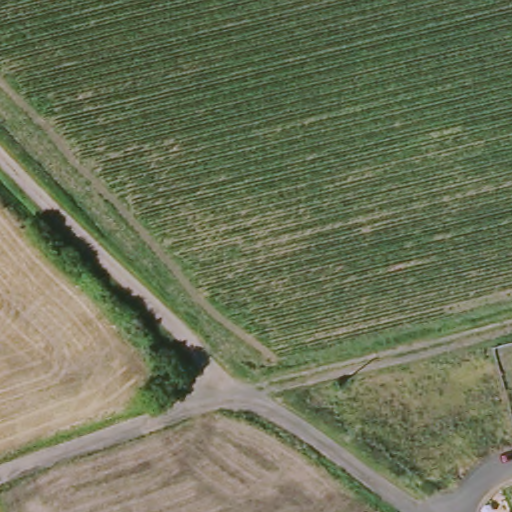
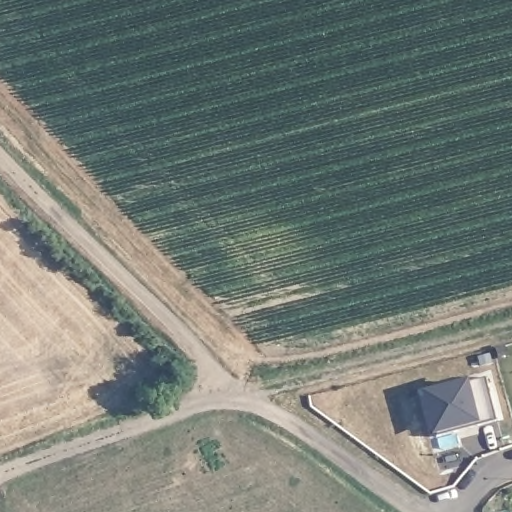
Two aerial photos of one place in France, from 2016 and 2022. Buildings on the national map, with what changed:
new [(481,380),(494,424),(478,428),(432,441),(420,398),(466,385),(481,380)]

